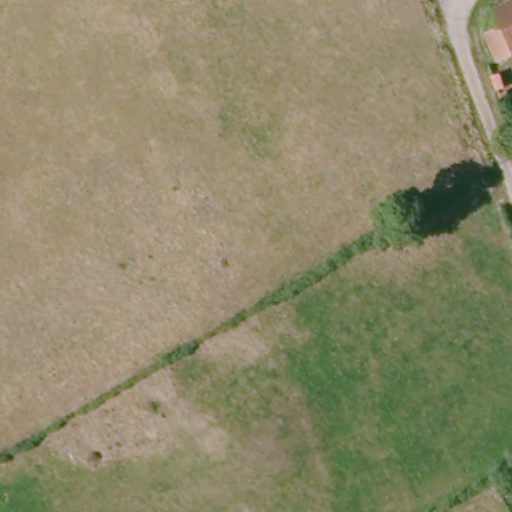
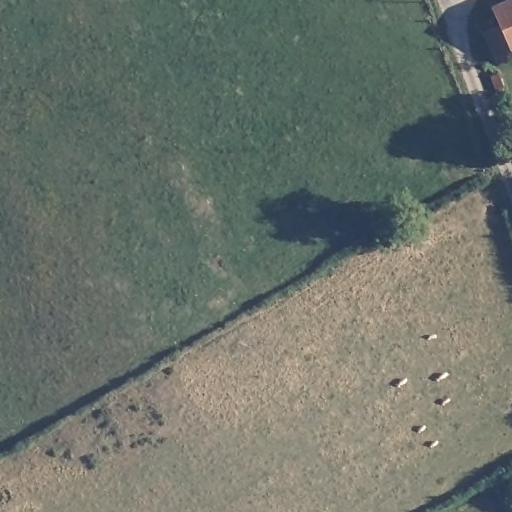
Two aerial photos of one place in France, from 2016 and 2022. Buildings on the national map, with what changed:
unchanged [(512,8),(512,64),(509,65),(497,36),(508,28),(500,13),(512,8)]
unchanged [(512,76),(512,93),(511,94),(507,79),(512,76)]

